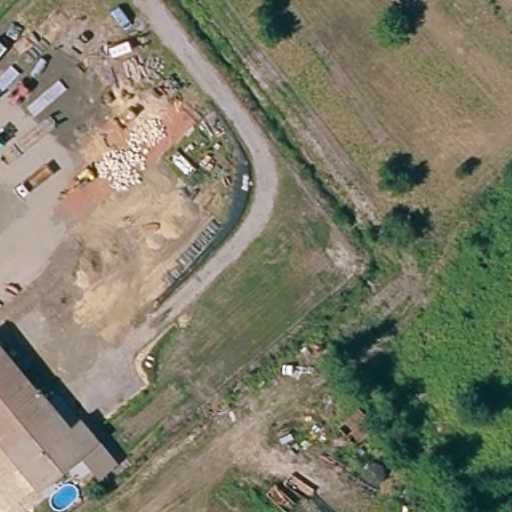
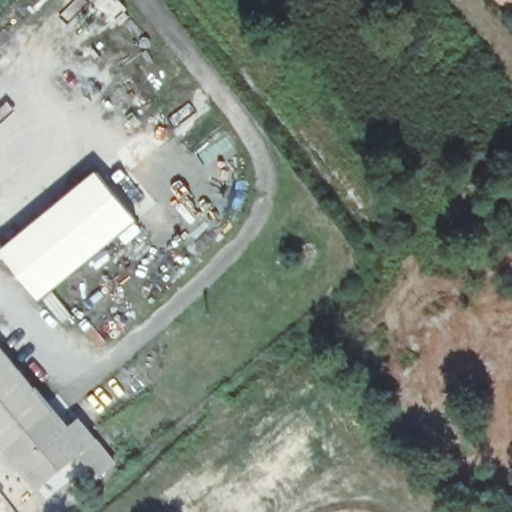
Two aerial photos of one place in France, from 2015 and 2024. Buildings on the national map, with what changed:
new [(136,218),(40,298),(1,251),(96,172),(136,218)]
unchanged [(75,418),(110,464),(89,480),(71,457),(32,488),(0,445),(0,338),(65,426),(75,418)]

